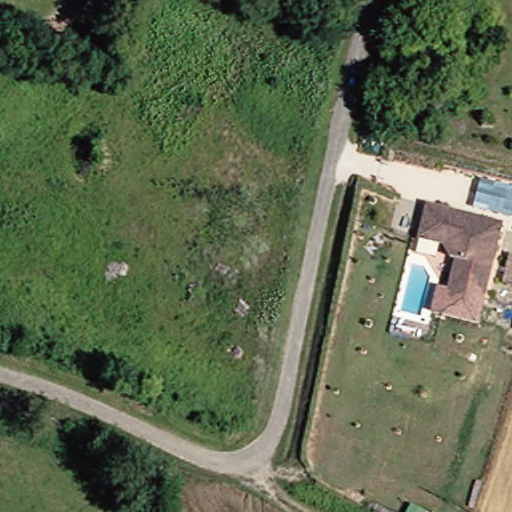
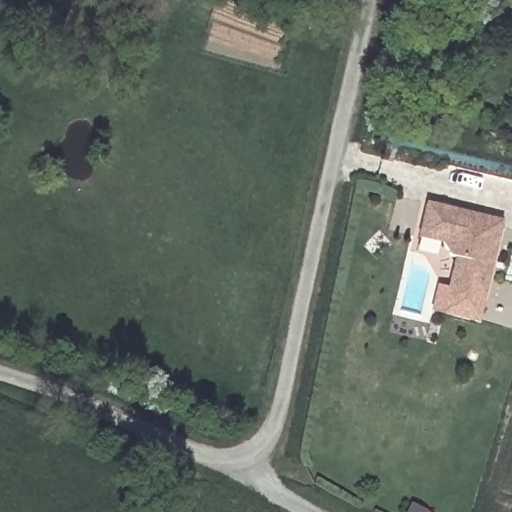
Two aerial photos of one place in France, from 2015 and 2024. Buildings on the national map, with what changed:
unchanged [(448,285),(455,254),(450,252),(442,239),(418,235),(420,222),(425,199),(468,209),(501,217),(500,222),(484,294),(448,285)]

